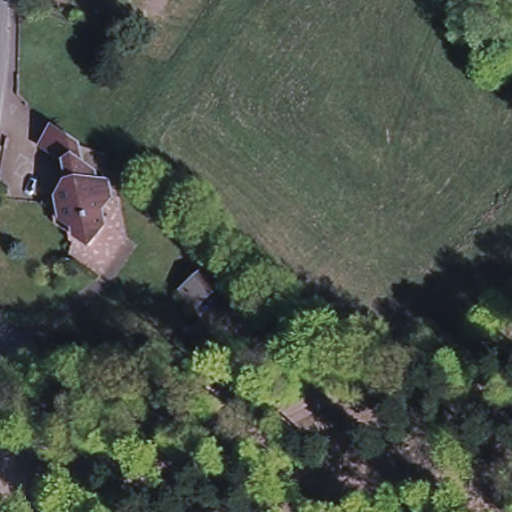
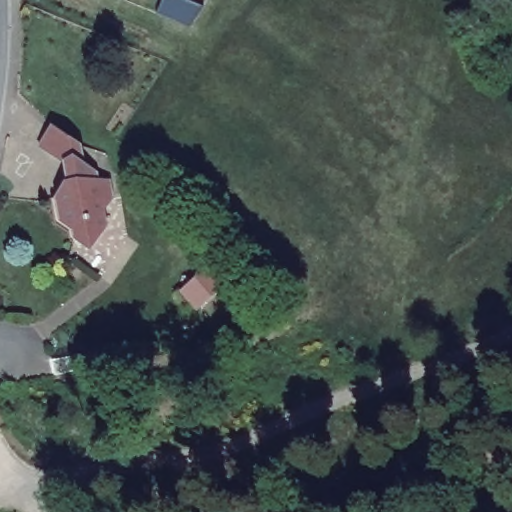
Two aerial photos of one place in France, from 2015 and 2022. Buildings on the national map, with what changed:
new [(201,5),(193,29),(154,15),(160,0),(190,0),(201,5)]
unchanged [(67,187),(76,186),(76,180),(73,179),(69,175),(68,166),(40,149),(53,131),(80,149),(78,163),(95,177),(98,187),(108,185),(111,200),(100,202),(105,229),(91,251),(77,241),(75,232),(62,224),(58,201),(67,187)]
unchanged [(191,290),(211,272),(224,287),(199,310),(191,300),(186,294),(191,290)]

